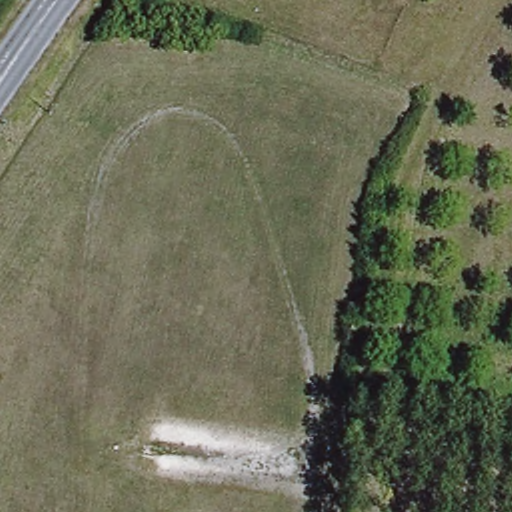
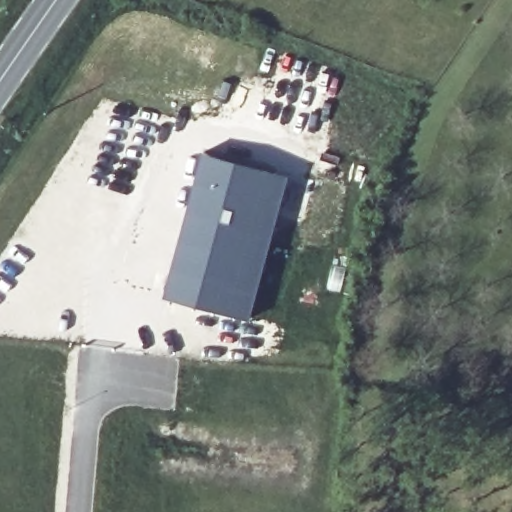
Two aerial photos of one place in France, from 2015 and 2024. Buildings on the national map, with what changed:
new [(184,221),(200,150),(291,173),(250,321),(161,298),(184,221)]

